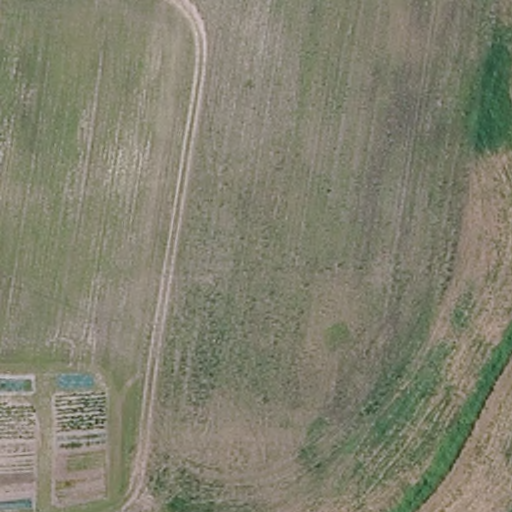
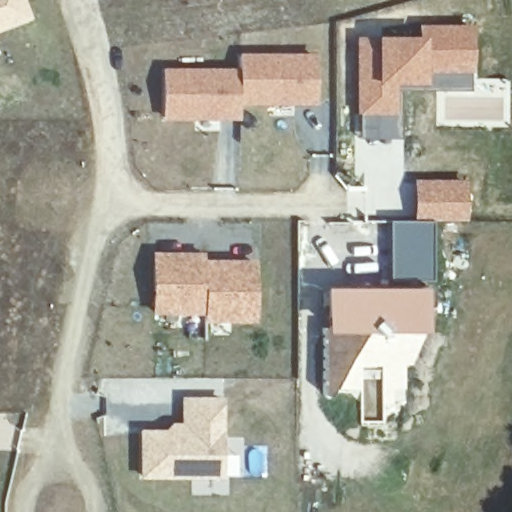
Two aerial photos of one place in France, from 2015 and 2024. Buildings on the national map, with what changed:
new [(31,21),(0,33),(0,0),(24,0),(31,21)]
new [(361,42),(422,42),(422,30),(471,31),(471,73),(422,73),(422,82),(396,82),(395,115),(359,114),(361,42)]
new [(238,52),(319,52),(316,107),(240,106),(238,67),(238,52)]
new [(163,67),(238,67),(240,106),(241,121),(162,121),(163,67)]
new [(395,115),(396,82),(422,82),(422,73),(469,73),(469,90),(399,90),(401,140),(361,140),(361,114),(395,115)]
new [(417,185),(463,185),(462,222),(416,221),(417,185)]
new [(433,279),(389,280),(389,220),(416,221),(433,221),(433,279)]
new [(151,251),(205,251),(205,258),(203,316),(150,314),(151,251)]
new [(205,258),(255,259),(254,324),(204,322),(203,316),(205,258)]
new [(426,287),(422,328),(357,328),(329,371),(323,371),(323,288),(426,287)]
new [(172,432),(173,424),(185,425),(186,401),(222,401),(220,475),(142,475),(143,432),(172,432)]

